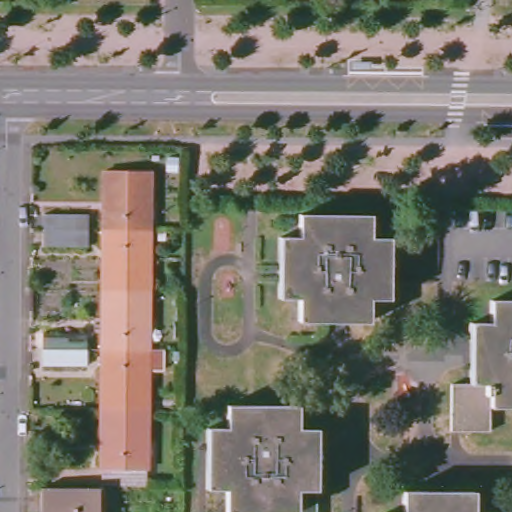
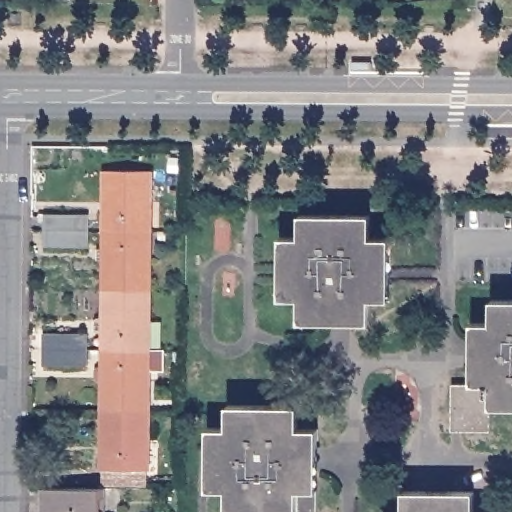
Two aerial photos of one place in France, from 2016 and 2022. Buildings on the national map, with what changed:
unchanged [(101,166),(146,166),(146,227),(121,227),(100,227),(101,166)]
unchanged [(297,235),(297,212),(368,212),(368,235),(388,235),(386,295),(367,294),(366,317),(296,317),(296,295),(276,295),(277,234),(297,235)]
unchanged [(45,248),(45,231),(45,216),(90,216),(90,232),(90,248),(45,248)]
unchanged [(146,286),(130,286),(100,285),(100,227),(121,227),(146,227),(146,286)]
unchanged [(100,285),(130,286),(146,286),(145,345),(100,344),(100,285)]
unchanged [(491,319),(492,295),(512,296),(512,402),(491,402),(491,416),(464,416),(464,379),(472,379),(471,319),(491,319)]
unchanged [(45,365),(45,349),(45,333),(90,334),(90,349),(90,364),(45,365)]
unchanged [(100,344),(145,345),(145,405),(99,405),(100,344)]
unchanged [(228,425),(228,402),(298,402),(298,424),(318,424),(317,487),(297,487),(297,509),(228,509),(228,486),(207,486),(209,424),(228,425)]
unchanged [(145,405),(145,481),(99,481),(99,405),(145,405)]
unchanged [(48,484),(101,484),(101,512),(38,512),(38,484),(48,484)]
unchanged [(404,492),(475,492),(475,512),(404,512),(404,492)]

